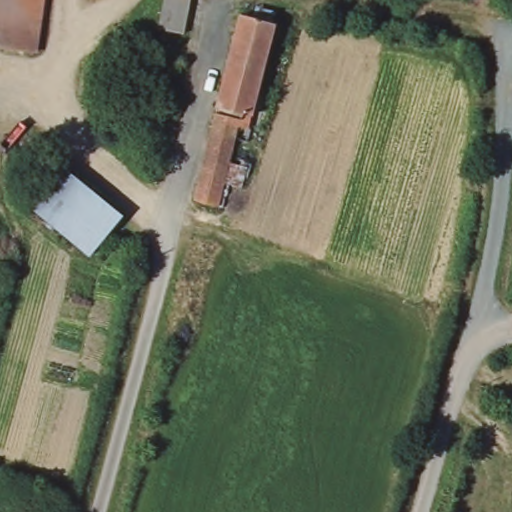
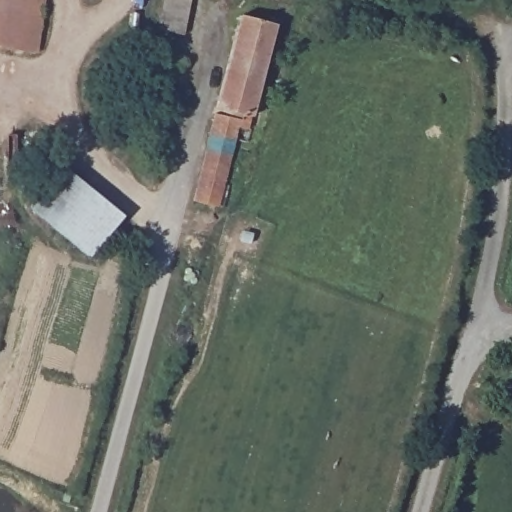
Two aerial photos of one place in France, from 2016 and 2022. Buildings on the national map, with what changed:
unchanged [(35,53),(0,49),(0,0),(41,0),(35,53)]
unchanged [(160,0),(187,0),(181,35),(155,30),(160,0)]
unchanged [(212,112),(210,112),(235,14),(272,24),(245,130),(236,127),(227,162),(244,167),(239,187),(222,184),(217,207),(190,200),(212,112)]
unchanged [(60,165),(120,215),(105,232),(86,255),(32,209),(26,205),(60,165)]

